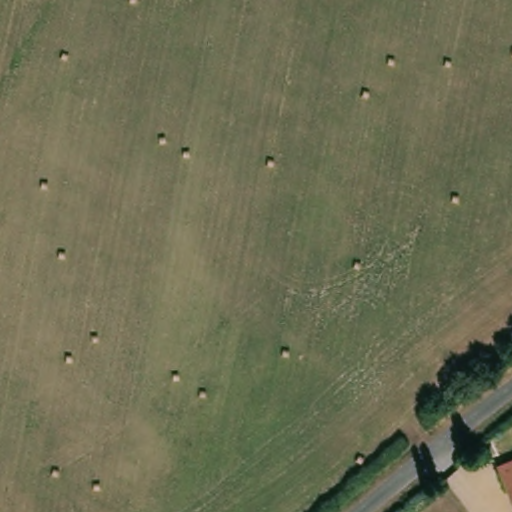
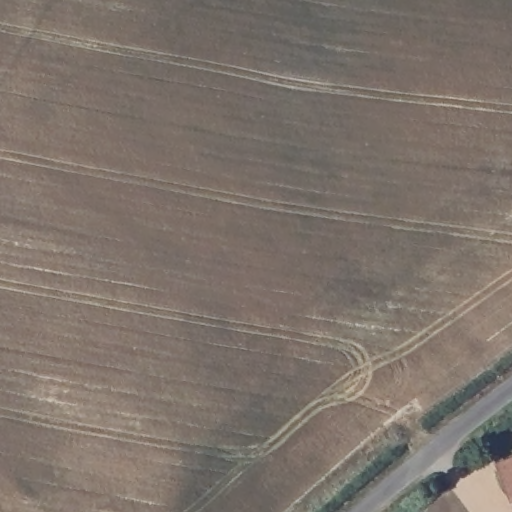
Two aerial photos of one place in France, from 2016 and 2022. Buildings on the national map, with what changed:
unchanged [(512,457),(512,512),(511,512),(491,466),(512,457)]

